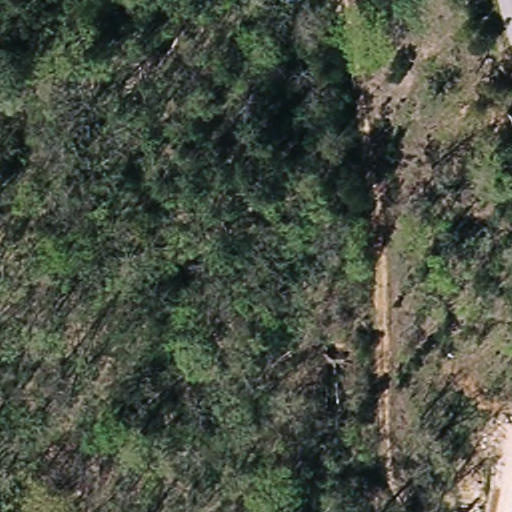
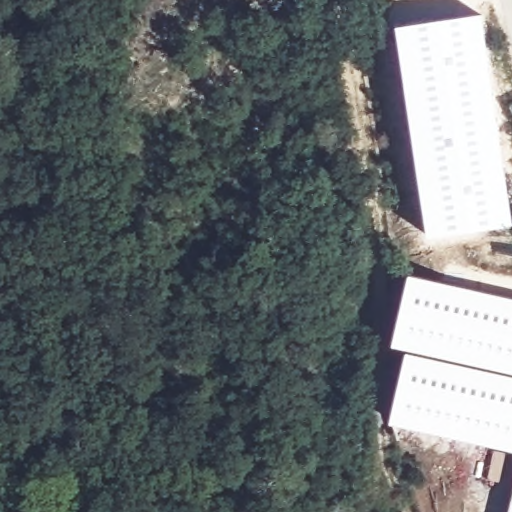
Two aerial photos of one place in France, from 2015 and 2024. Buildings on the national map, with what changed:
new [(512,210),(512,224),(427,237),(397,26),(483,13),(512,210)]
new [(410,274),(512,298),(512,373),(393,344),(410,274)]
new [(512,450),(390,422),(407,352),(512,376),(512,450)]
unchanged [(512,512),(510,512),(512,501),(512,512)]

